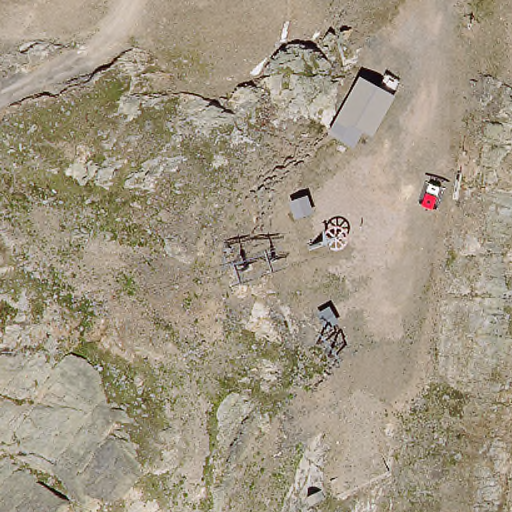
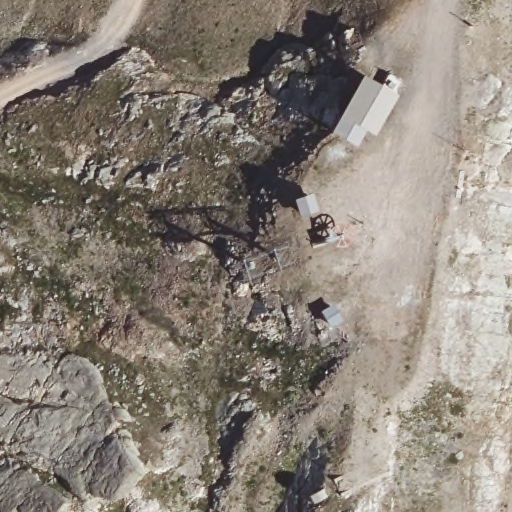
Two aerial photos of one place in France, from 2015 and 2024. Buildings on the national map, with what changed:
unchanged [(351,133),(343,129),(330,147),(305,133),(351,74),(383,92),(351,133)]
unchanged [(266,197),(272,215),(251,224),(246,206),(266,197)]
unchanged [(332,302),(341,319),(326,325),(319,308),(332,302)]

